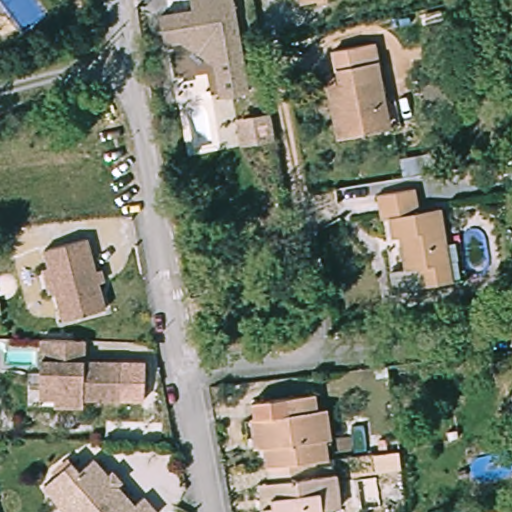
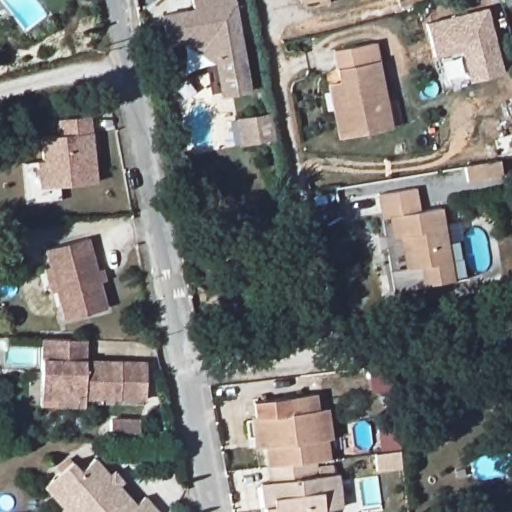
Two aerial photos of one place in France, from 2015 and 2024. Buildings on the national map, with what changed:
unchanged [(190,2),(190,0),(233,0),(248,84),(218,90),(213,53),(183,34),(163,36),(159,9),(190,2)]
unchanged [(301,3),(301,0),(314,0),(301,3)]
new [(435,60),(426,24),(488,9),(504,73),(469,83),(461,52),(435,60)]
unchanged [(381,46),(392,105),(385,106),(390,135),(345,143),(341,114),(349,112),(340,55),(381,46)]
new [(38,187),(35,161),(42,160),(40,136),(58,134),(58,119),(91,116),(98,182),(38,187)]
unchanged [(280,147),(247,154),(243,127),(276,120),(280,147)]
unchanged [(423,193),(425,215),(445,211),(453,261),(448,261),(451,281),(429,285),(426,265),(409,267),(406,249),(414,247),(413,236),(399,239),(396,221),(385,221),(382,199),(423,193)]
unchanged [(42,271),(48,269),(43,250),(84,239),(93,271),(99,269),(102,280),(96,282),(105,309),(63,321),(55,291),(48,293),(42,271)]
unchanged [(58,395),(41,395),(41,380),(41,337),(86,337),(86,358),(122,358),(146,358),(145,397),(121,396),(86,395),(86,403),(58,403),(58,395)]
unchanged [(269,453),(276,451),(274,440),(266,441),(264,425),(256,426),(253,409),(314,398),(316,417),(330,415),(333,441),(318,445),(320,462),(316,462),(272,471),(269,453)]
unchanged [(47,488),(70,466),(78,476),(93,462),(136,505),(146,495),(161,511),(160,512),(69,512),(63,505),(47,488)]
unchanged [(319,482),(335,479),(341,512),(277,512),(279,511),(272,471),(316,462),(319,482)]

